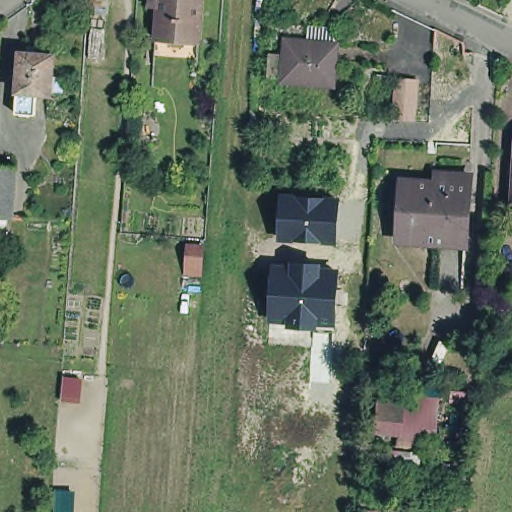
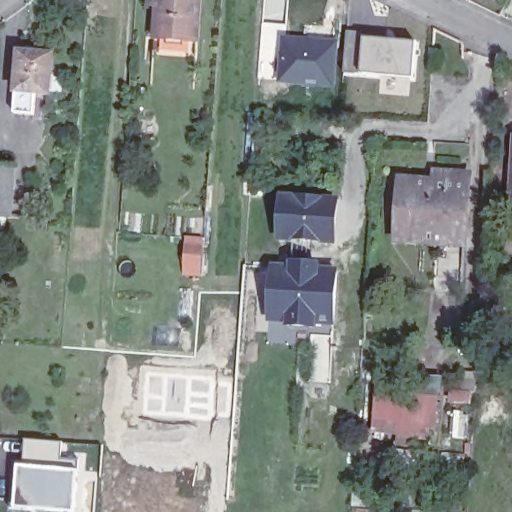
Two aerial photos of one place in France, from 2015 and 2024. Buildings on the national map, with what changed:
unchanged [(179,47),(158,46),(158,36),(161,0),(204,0),(201,38),(200,49),(179,47)]
new [(345,30),(358,32),(358,35),(415,41),(411,79),(341,72),(345,30)]
unchanged [(338,52),(333,91),(282,85),(286,47),(338,52)]
unchanged [(54,56),(51,93),(36,92),(34,115),(15,112),(19,52),(54,56)]
unchanged [(409,90),(404,128),(384,126),(387,87),(409,90)]
unchanged [(0,163),(15,165),(13,214),(4,213),(3,239),(0,239),(0,163)]
unchanged [(442,176),(473,179),(469,247),(399,243),(401,218),(404,182),(412,182),(441,184),(442,176)]
unchanged [(279,195),(295,195),(296,196),(325,199),(326,196),(340,197),(337,245),(321,245),(320,242),(293,242),(292,242),(276,242),(279,195)]
unchanged [(204,245),(201,277),(183,276),(186,244),(204,245)]
unchanged [(290,266),(290,261),(322,263),(321,268),(339,268),(335,327),(317,326),(317,329),(286,327),(286,323),(268,322),(271,264),(290,266)]
unchanged [(448,398),(444,441),(376,434),(379,392),(448,398)]
new [(21,463),(23,438),(63,442),(61,457),(79,458),(75,512),(37,512),(11,510),(15,463),(21,463)]

